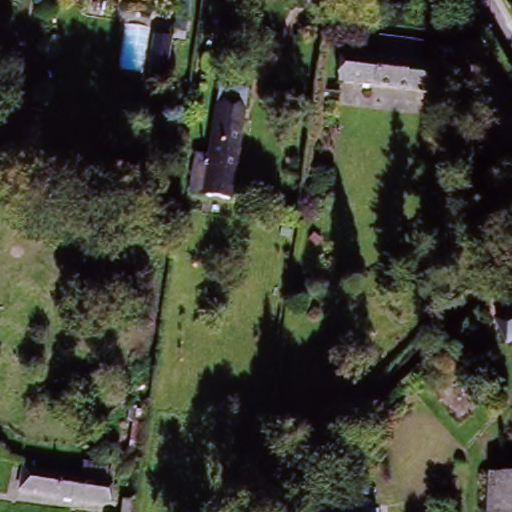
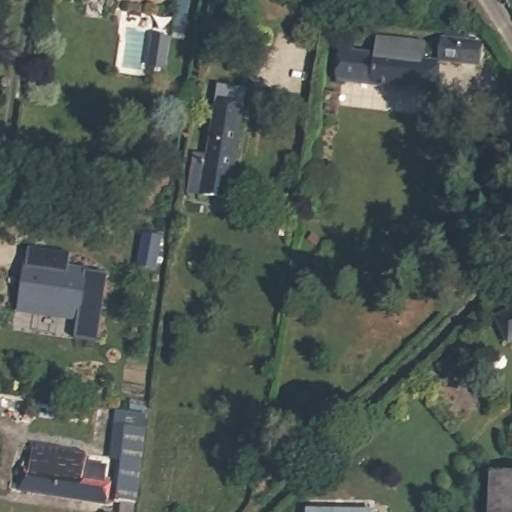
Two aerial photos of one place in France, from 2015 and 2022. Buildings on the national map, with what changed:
unchanged [(171,6),(128,0),(172,0),(171,6)]
unchanged [(378,39),(424,44),(422,68),(376,64),(378,39)]
unchanged [(436,62),(439,43),(472,47),(490,49),(487,68),(470,66),(436,62)]
unchanged [(376,64),(422,68),(429,69),(425,97),(342,87),(344,60),(376,64)]
unchanged [(195,198),(199,162),(208,163),(216,92),(245,95),(234,202),(195,198)]
new [(34,251),(62,255),(76,257),(74,272),(112,278),(102,346),(80,343),(84,320),(25,311),(32,265),(34,251)]
unchanged [(495,323),(512,314),(512,342),(507,345),(495,323)]
unchanged [(122,456),(128,457),(131,427),(124,426),(125,401),(150,400),(140,471),(120,469),(120,455),(122,456)]
unchanged [(112,481),(108,503),(27,491),(30,469),(112,481)]
unchanged [(494,472),(512,473),(512,512),(493,512),(493,491),(494,472)]

